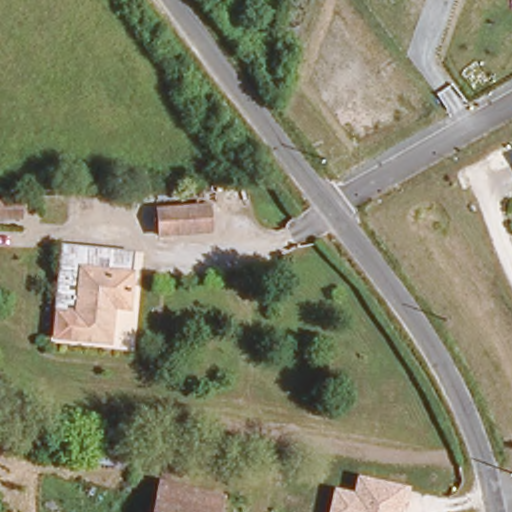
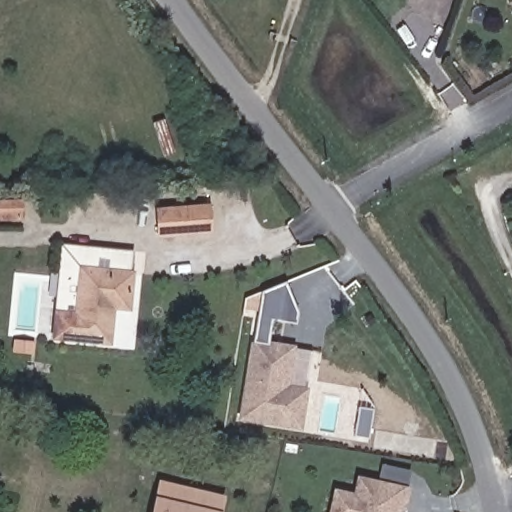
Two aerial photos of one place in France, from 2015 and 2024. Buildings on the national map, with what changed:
unchanged [(19,194),(20,208),(0,209),(0,196),(19,194)]
unchanged [(204,201),(206,229),(166,235),(163,207),(204,201)]
unchanged [(125,309),(110,307),(108,342),(53,337),(54,312),(57,267),(79,269),(128,274),(125,309)]
new [(308,392),(302,430),(237,420),(249,341),(254,342),(258,311),(243,309),(244,299),(285,281),(298,311),(295,323),(271,320),(269,340),(296,344),(296,349),(309,352),(304,391),(308,392)]
unchanged [(401,510),(401,512),(329,512),(336,487),(355,492),(359,474),(411,485),(405,511),(401,510)]
unchanged [(224,491),(218,512),(147,512),(156,478),(224,491)]

